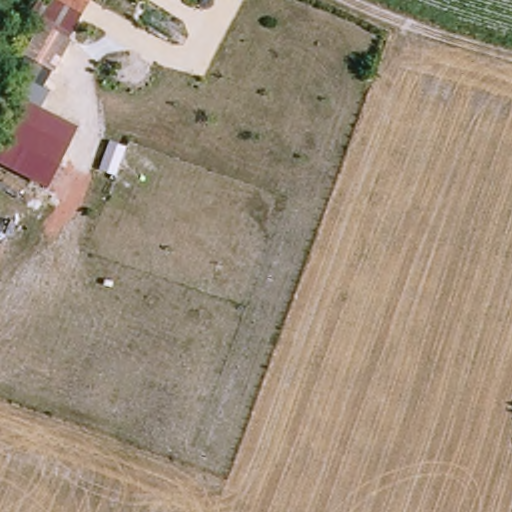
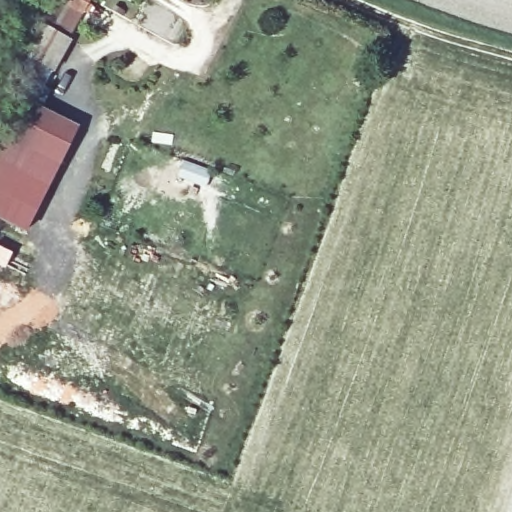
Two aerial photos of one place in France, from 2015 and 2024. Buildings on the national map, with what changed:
unchanged [(39,0),(90,0),(72,30),(34,9),(39,0)]
unchanged [(49,187),(0,164),(0,107),(45,15),(72,30),(38,107),(79,127),(49,187)]
new [(0,221),(0,164),(49,187),(25,232),(0,221)]

